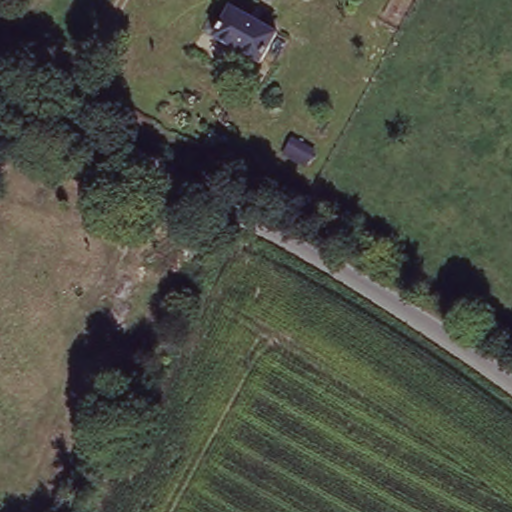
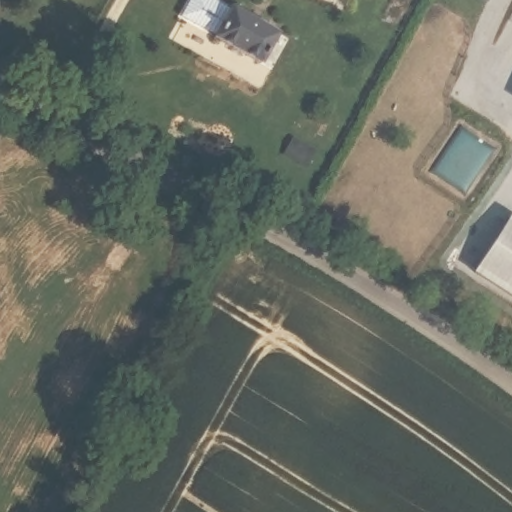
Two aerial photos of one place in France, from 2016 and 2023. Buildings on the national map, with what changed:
unchanged [(230,6),(276,33),(260,63),(213,36),(230,6)]
new [(512,223),(512,303),(475,279),(510,221),(512,223)]

